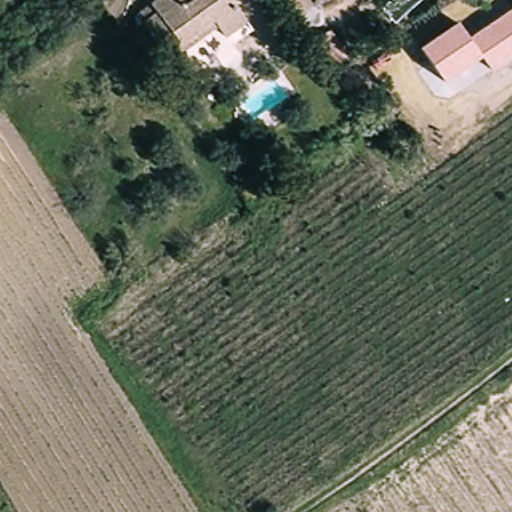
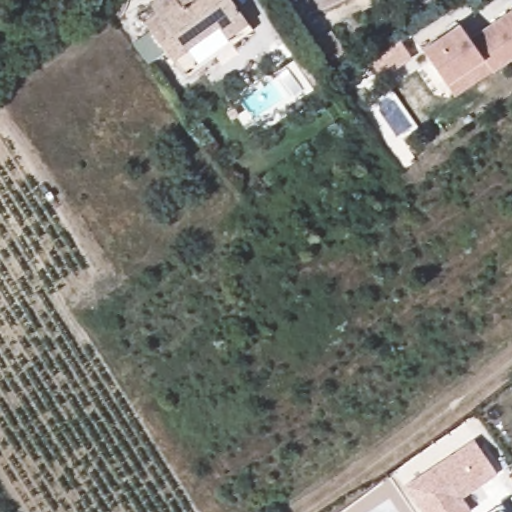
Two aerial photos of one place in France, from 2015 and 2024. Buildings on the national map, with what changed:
unchanged [(170,59),(142,22),(135,12),(149,3),(153,0),(230,0),(245,21),(223,37),(215,26),(183,50),(170,59)]
unchanged [(482,59),(448,84),(421,49),(457,25),(465,34),(512,9),(512,57),(492,71),(482,59)]
unchanged [(330,29),(348,56),(335,65),(316,38),(330,29)]
new [(475,441),(496,474),(460,498),(470,512),(423,512),(406,487),(475,441)]

